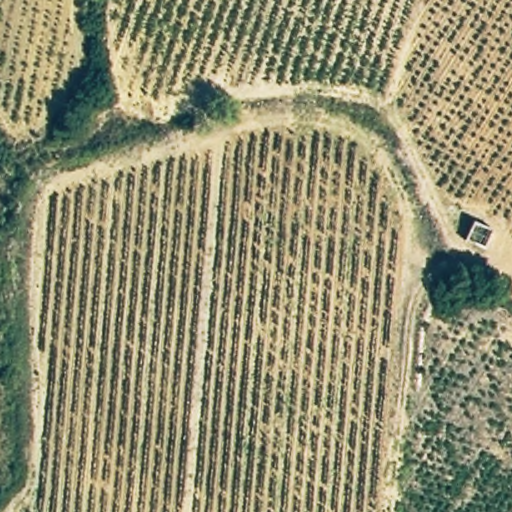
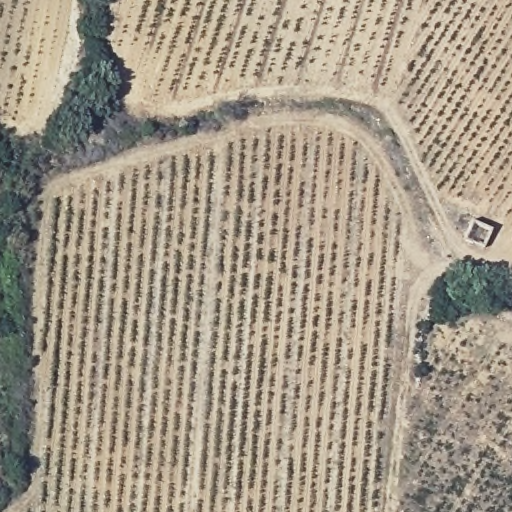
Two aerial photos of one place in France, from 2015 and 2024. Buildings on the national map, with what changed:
unchanged [(489,231),(485,248),(467,236),(474,221),(489,231)]

